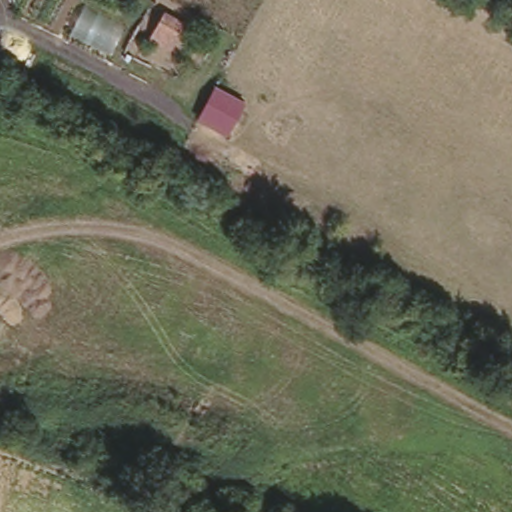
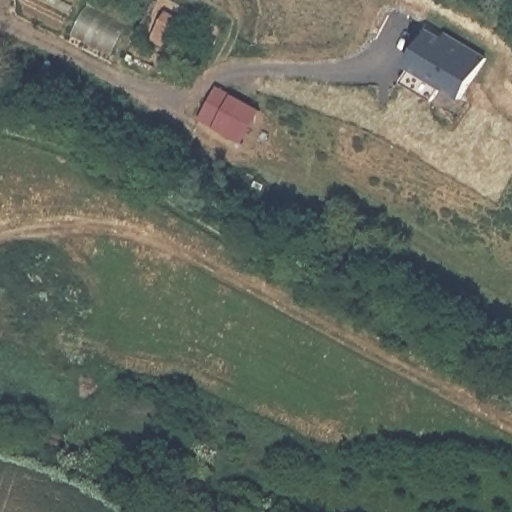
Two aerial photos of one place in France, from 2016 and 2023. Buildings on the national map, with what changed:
unchanged [(185,22),(169,51),(148,38),(163,10),(185,22)]
new [(437,87),(428,101),(399,82),(409,68),(405,65),(427,32),(459,53),(441,41),(445,36),(462,48),(483,61),(457,100),(437,87)]
unchanged [(247,100),(229,137),(197,118),(215,84),(247,100)]

